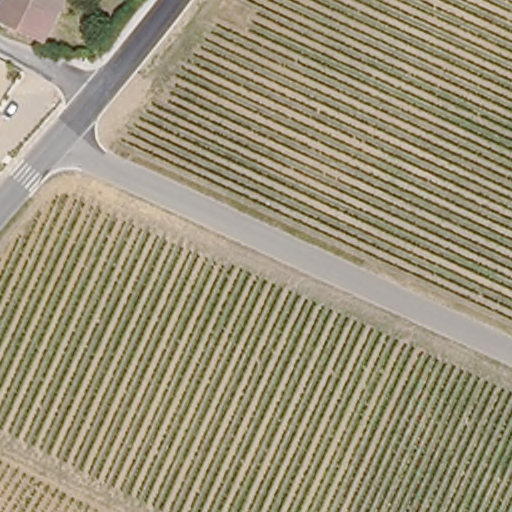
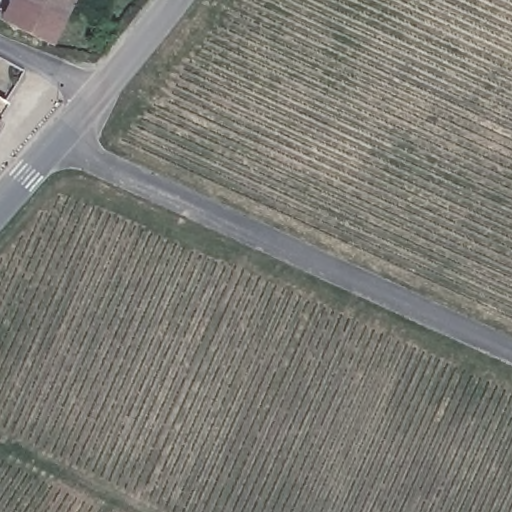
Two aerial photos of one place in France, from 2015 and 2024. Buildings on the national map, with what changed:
unchanged [(40,39),(0,19),(0,0),(61,0),(40,39)]
unchanged [(0,109),(0,101),(3,103),(0,109)]

